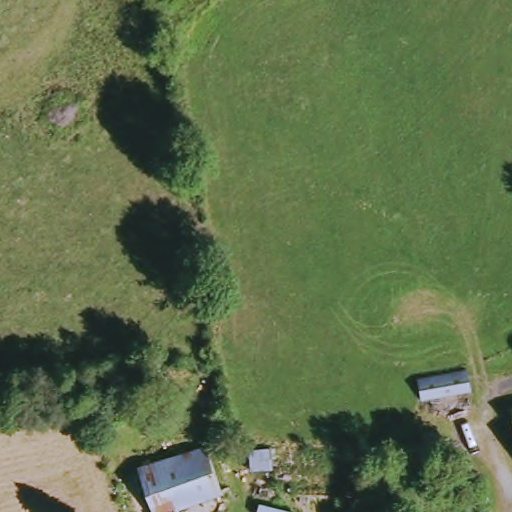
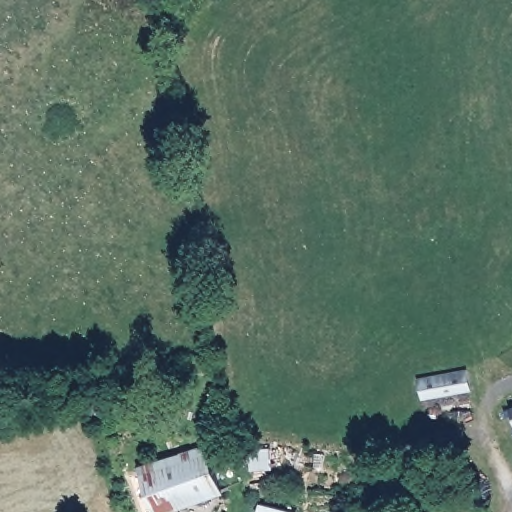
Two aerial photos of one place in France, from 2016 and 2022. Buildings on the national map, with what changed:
unchanged [(424,384),(468,371),(475,388),(432,403),(424,384)]
unchanged [(224,483),(162,505),(146,461),(210,439),(224,483)]

